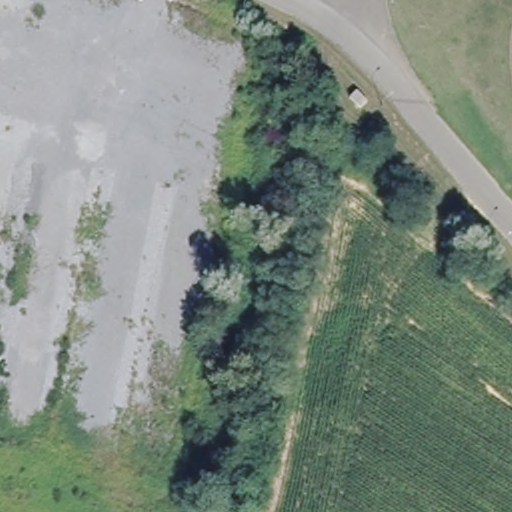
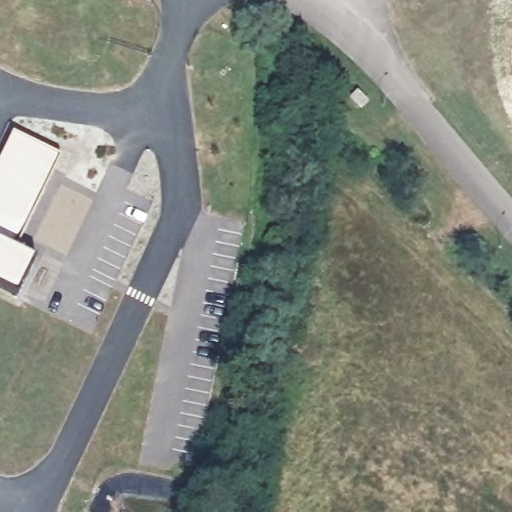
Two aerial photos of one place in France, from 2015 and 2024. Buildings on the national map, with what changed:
new [(329,115),(336,105),(350,117),(342,128),(329,115)]
new [(61,158),(16,250),(36,260),(17,298),(0,290),(0,161),(13,134),(61,158)]

